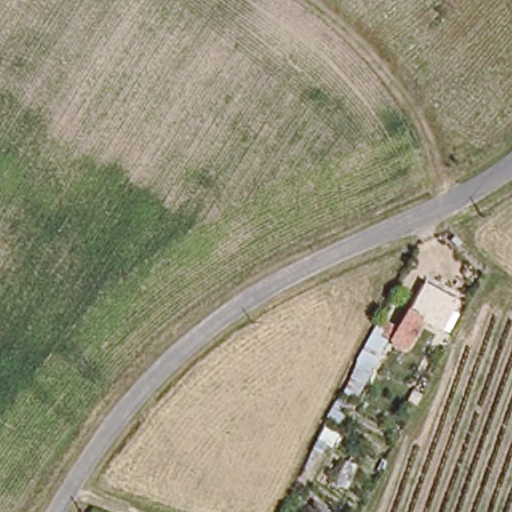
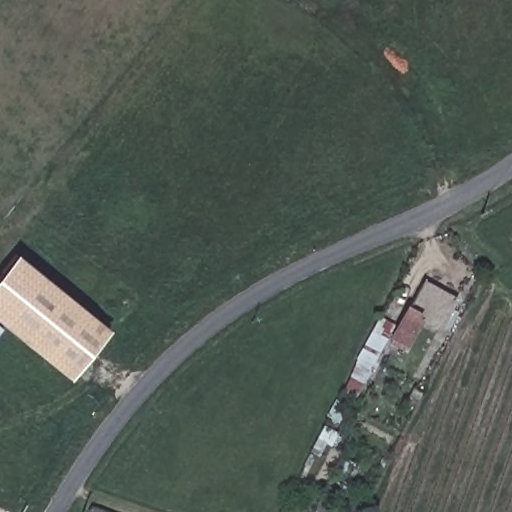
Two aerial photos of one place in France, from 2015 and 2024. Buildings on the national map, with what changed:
new [(0,331),(0,273),(14,255),(107,331),(67,380),(3,327),(0,331)]
unchanged [(437,325),(407,309),(421,282),(450,297),(437,325)]

